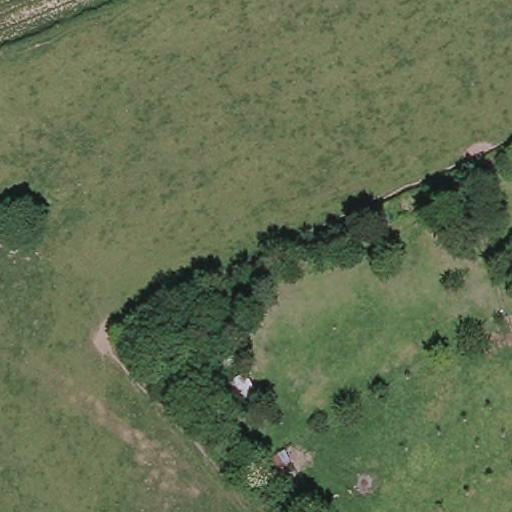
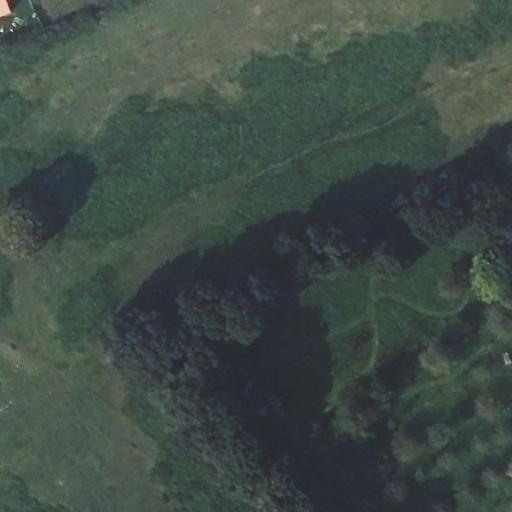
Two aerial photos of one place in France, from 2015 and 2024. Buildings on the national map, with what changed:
new [(0,16),(0,0),(6,0),(11,13),(0,16)]
unchanged [(235,407),(219,384),(242,367),(259,394),(235,407)]

